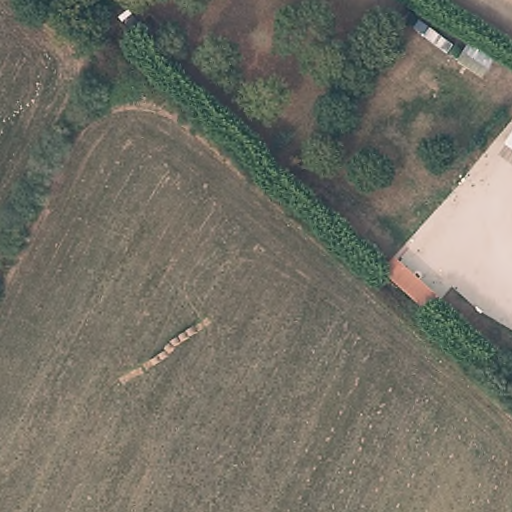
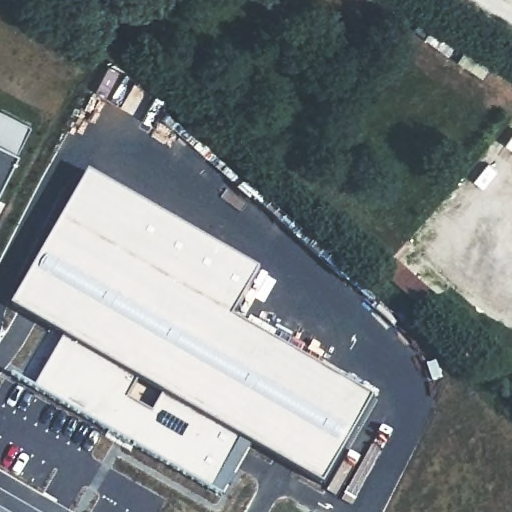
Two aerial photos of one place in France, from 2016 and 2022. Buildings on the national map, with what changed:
new [(16,152),(0,183),(0,110),(29,124),(16,152)]
new [(90,173),(258,269),(233,315),(372,397),(323,484),(250,443),(222,493),(34,386),(64,336),(12,307),(90,173)]
unchanged [(413,270),(435,289),(422,302),(401,282),(413,270)]

